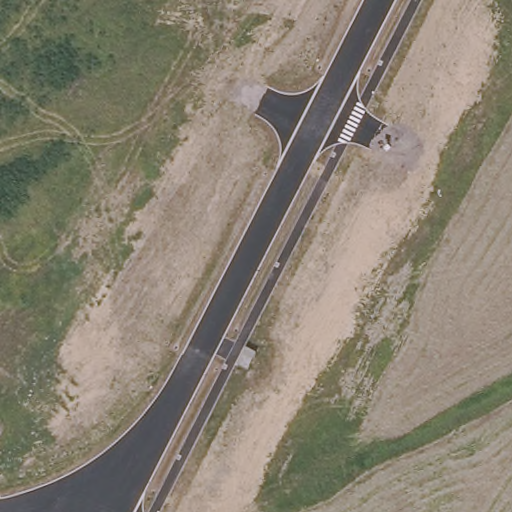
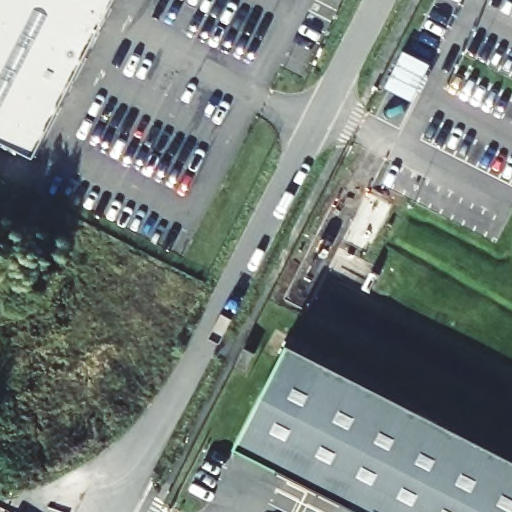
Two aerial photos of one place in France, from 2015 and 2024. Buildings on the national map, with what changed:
unchanged [(0,141),(0,0),(114,0),(37,159),(0,141)]
new [(512,456),(512,512),(368,512),(239,445),(292,343),(512,456)]

